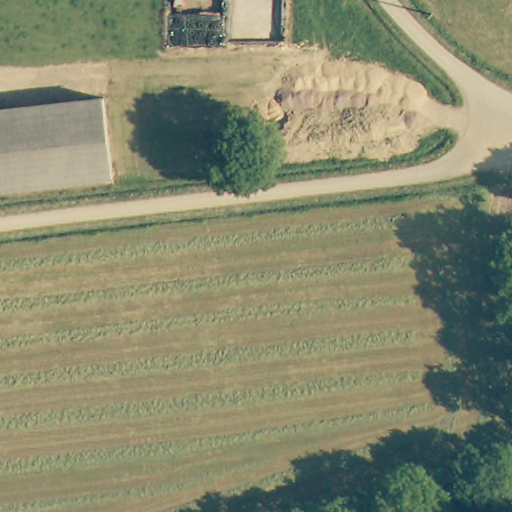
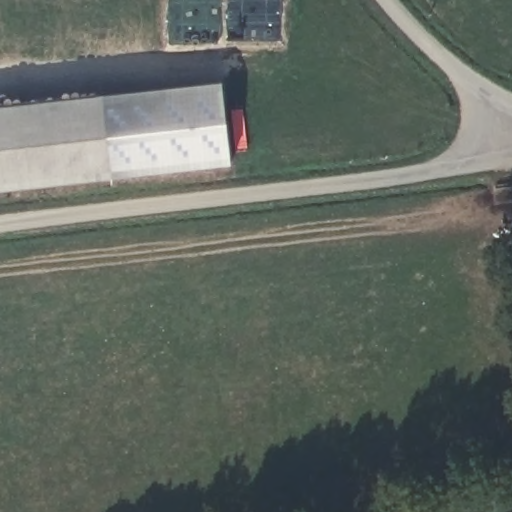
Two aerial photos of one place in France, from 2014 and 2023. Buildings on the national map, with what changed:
new [(98,94),(223,82),(232,166),(113,179),(108,173),(98,94)]
unchanged [(98,94),(108,173),(0,186),(0,106),(98,94)]

